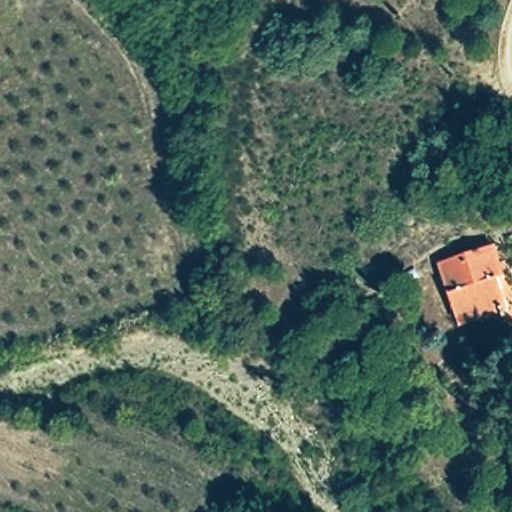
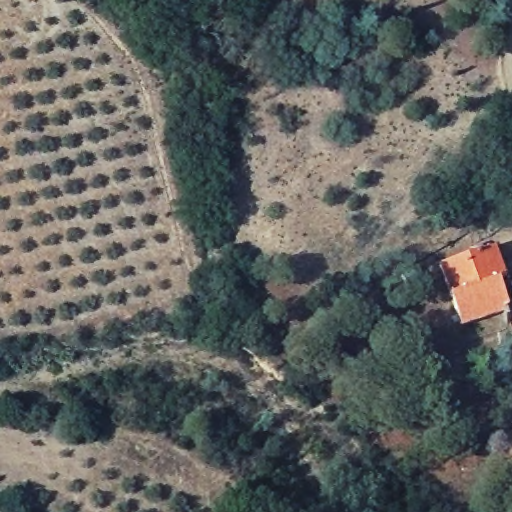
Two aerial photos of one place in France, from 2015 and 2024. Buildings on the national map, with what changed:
unchanged [(452,324),(437,260),(497,246),(505,276),(498,278),(505,311),(452,324)]

